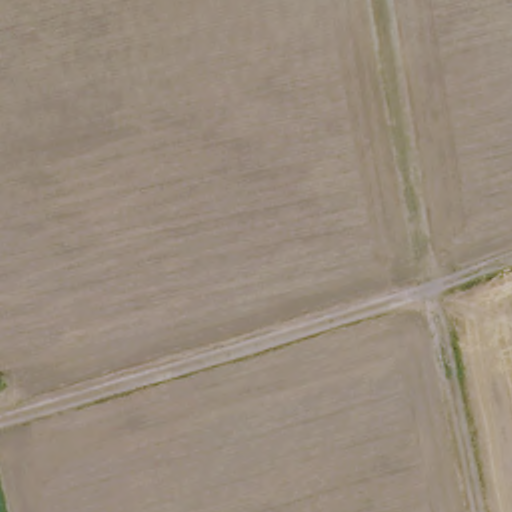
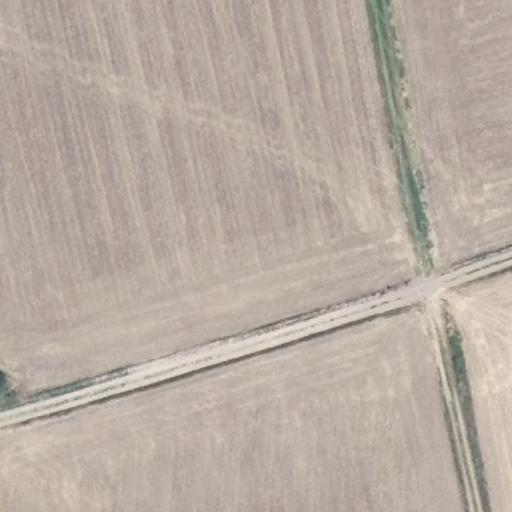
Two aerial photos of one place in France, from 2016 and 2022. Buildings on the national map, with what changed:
[]

